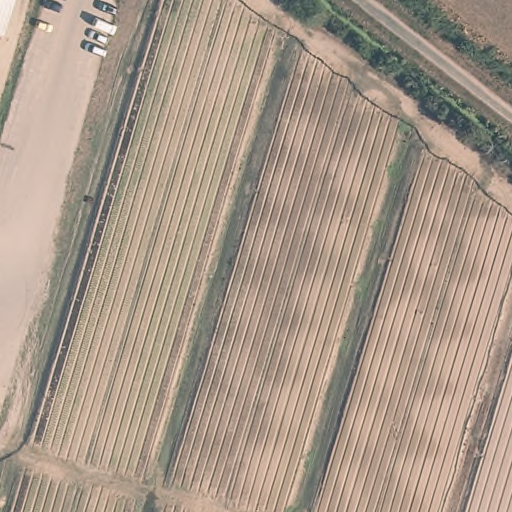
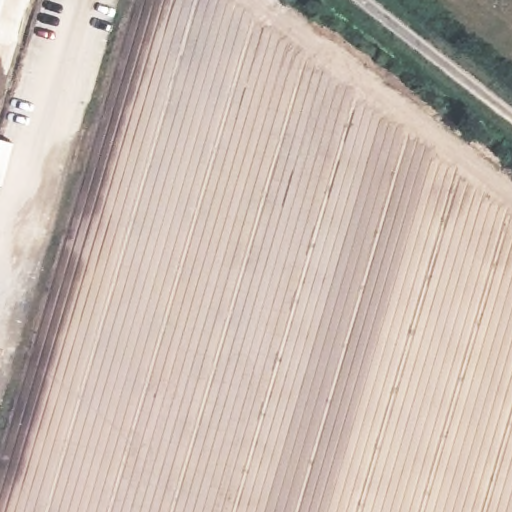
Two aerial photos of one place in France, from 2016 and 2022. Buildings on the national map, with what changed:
unchanged [(0,23),(0,0),(13,0),(7,25),(0,23)]

